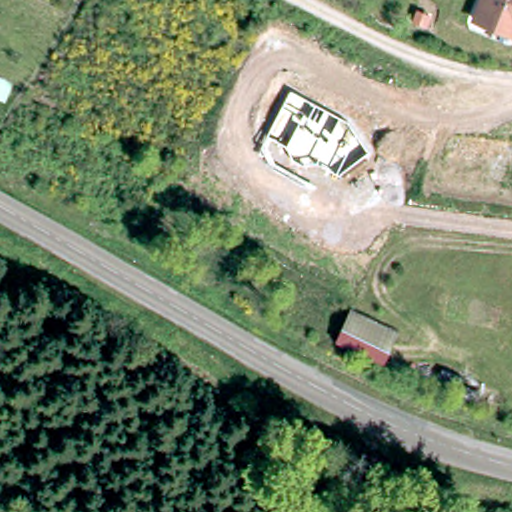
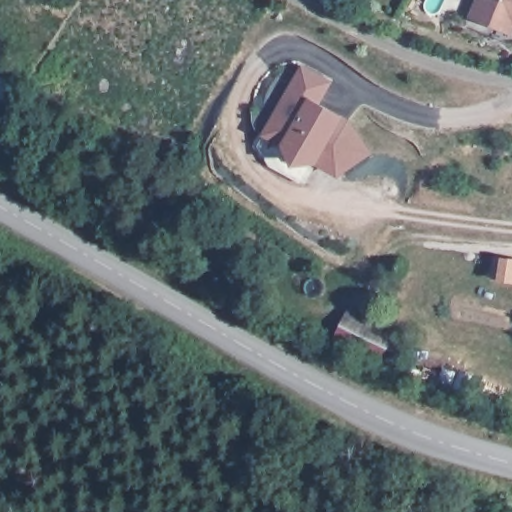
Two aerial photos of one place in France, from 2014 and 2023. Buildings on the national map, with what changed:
unchanged [(476,12),(481,0),(512,0),(512,27),(500,22),(476,12)]
new [(323,104),(345,116),(371,153),(339,176),(317,164),(293,166),(281,145),(261,135),(301,64),(333,81),(323,104)]

